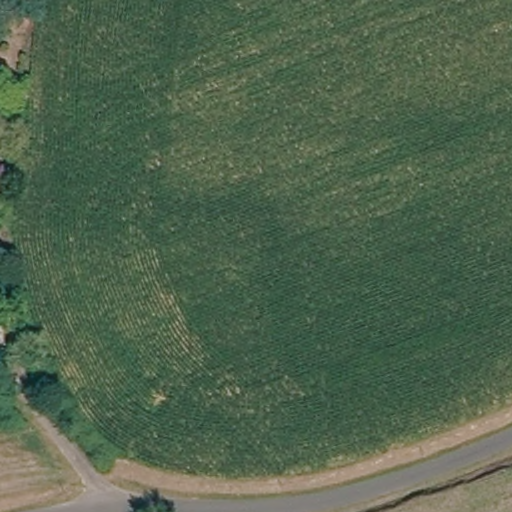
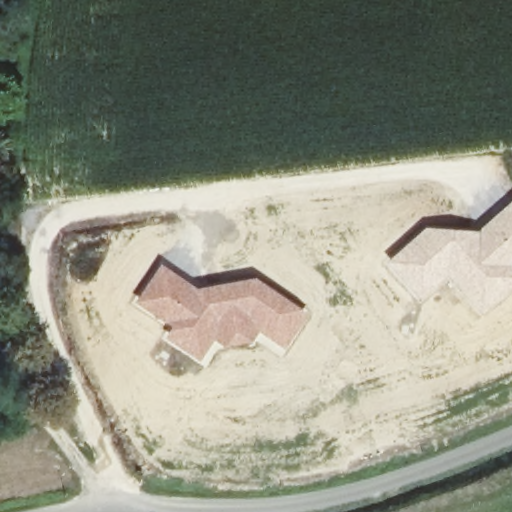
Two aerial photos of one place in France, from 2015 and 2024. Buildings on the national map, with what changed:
new [(482,315),(447,275),(420,300),(384,262),(424,227),(476,232),(512,201),(512,265),(512,288),(482,315)]
new [(196,288),(255,277),(306,313),(285,348),(258,330),(251,341),(223,346),(213,339),(198,360),(164,336),(171,326),(134,302),(160,262),(196,288)]

